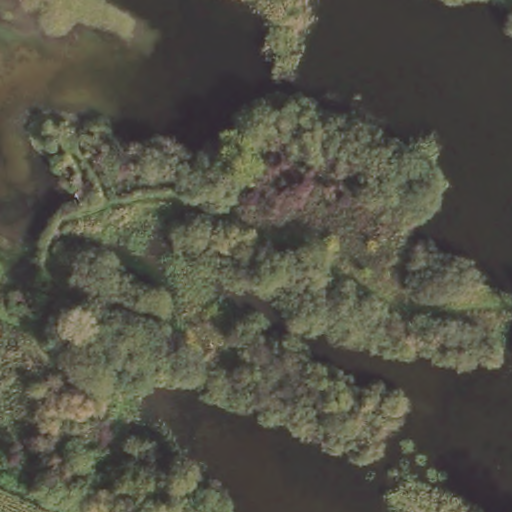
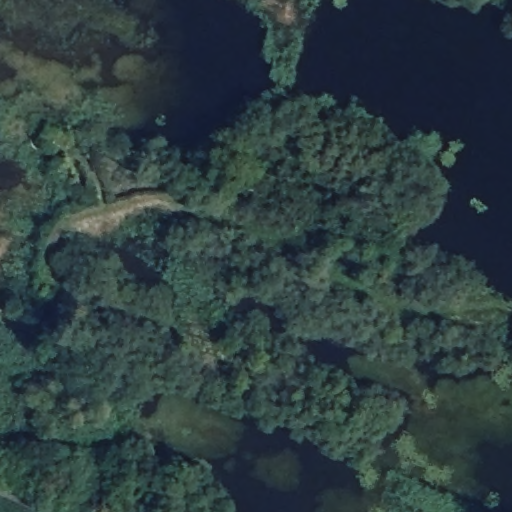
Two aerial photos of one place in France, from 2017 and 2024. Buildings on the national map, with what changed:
unchanged [(107,117),(123,125),(106,162),(88,155),(107,117)]

